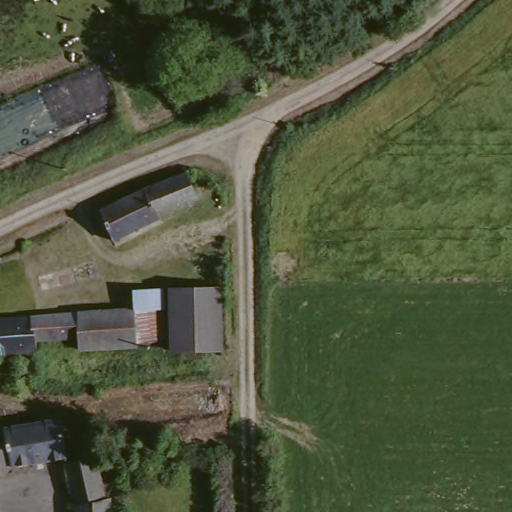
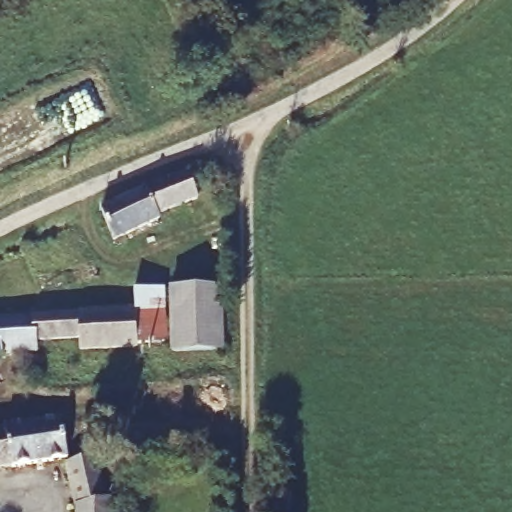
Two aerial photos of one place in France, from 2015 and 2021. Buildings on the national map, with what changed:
unchanged [(184,173),(194,200),(153,216),(155,222),(111,246),(98,210),(184,173)]
unchanged [(134,295),(161,294),(161,351),(134,351),(134,346),(134,312),(134,295)]
unchanged [(173,298),(219,298),(218,360),(171,360),(173,298)]
unchanged [(134,312),(134,346),(82,348),(82,339),(39,339),(38,317),(134,312)]
unchanged [(39,339),(39,351),(0,352),(0,319),(38,317),(39,339)]
unchanged [(64,462),(0,471),(0,432),(59,426),(64,462)]
unchanged [(73,451),(78,451),(80,464),(91,463),(101,505),(105,504),(106,512),(71,512),(64,467),(75,465),(73,451)]

